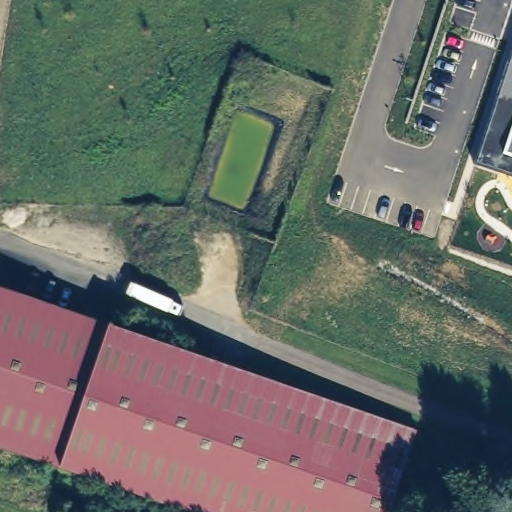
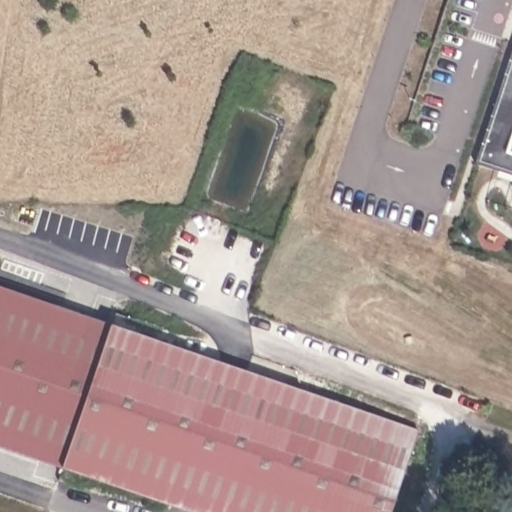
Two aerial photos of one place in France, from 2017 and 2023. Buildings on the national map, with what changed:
unchanged [(512,175),(475,162),(512,51),(512,175)]
unchanged [(410,435),(385,512),(173,512),(0,451),(0,290),(410,435)]

